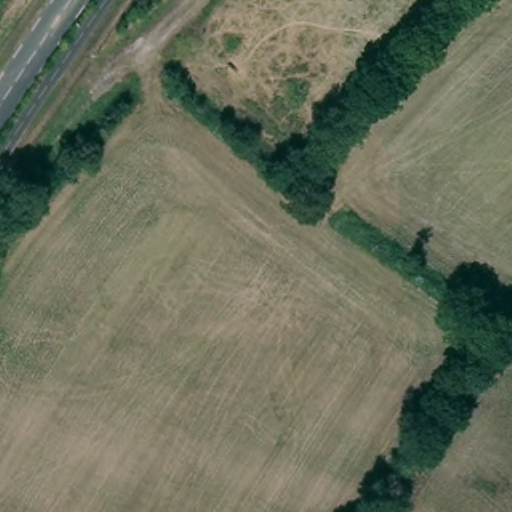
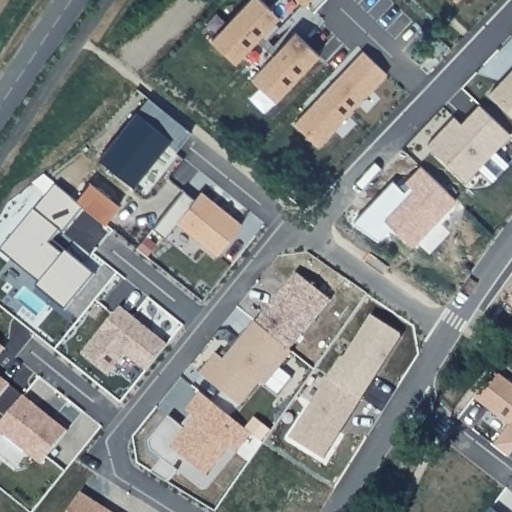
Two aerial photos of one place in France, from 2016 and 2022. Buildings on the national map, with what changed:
new [(277,99),(252,78),(260,69),(244,53),(237,61),(212,39),(248,0),(262,0),(270,7),(277,0),(307,0),(272,39),(279,47),(294,31),(318,53),(277,99)]
new [(386,73),(318,143),(296,121),(362,50),(386,73)]
new [(512,112),(491,92),(504,79),(512,69),(512,112)]
new [(509,132),(466,179),(428,143),(454,115),(460,120),(480,102),(509,132)]
new [(107,222),(77,199),(90,182),(120,204),(107,222)]
new [(36,207),(37,207),(58,185),(86,206),(65,232),(62,229),(52,242),(60,248),(61,246),(97,273),(67,309),(38,285),(41,280),(2,249),(36,207)]
new [(184,188),(196,198),(203,190),(243,223),(218,254),(179,221),(166,236),(154,226),(184,188)]
new [(298,270),(332,298),(291,348),(258,321),(298,270)]
new [(512,300),(512,305),(510,303),(512,300)]
new [(136,317),(149,327),(169,343),(147,369),(127,353),(111,373),(84,351),(122,305),(136,317)]
new [(342,357),(346,355),(372,314),(401,332),(402,335),(363,397),(329,376),(342,357)]
new [(219,352),(227,359),(258,321),(291,348),(293,349),(266,383),(262,379),(242,404),(203,373),(219,352)]
new [(5,345),(0,352),(0,342),(5,345)]
new [(512,452),(510,455),(495,445),(509,423),(475,396),(495,370),(512,383),(512,452)]
new [(9,381),(0,393),(0,374),(9,381)]
new [(325,457),(291,436),(329,376),(363,397),(354,412),(341,432),(325,457)]
new [(197,465),(184,455),(175,465),(179,468),(170,481),(153,471),(164,458),(153,449),(151,440),(171,415),(187,428),(197,416),(188,408),(201,391),(252,432),(237,450),(231,446),(217,463),(208,474),(197,465)]
new [(25,394),(69,429),(42,462),(0,429),(0,425),(25,394)]
new [(115,512),(69,512),(82,491),(115,512)]

